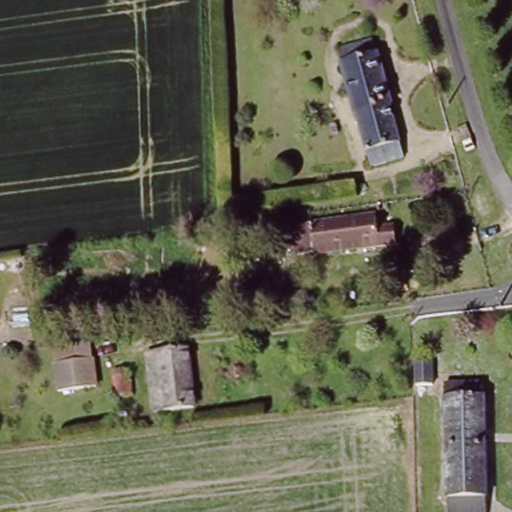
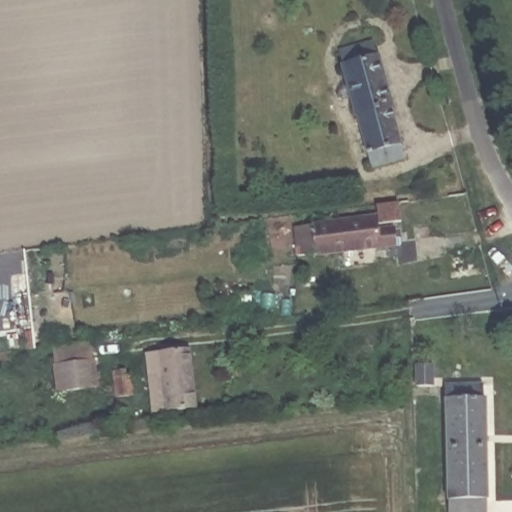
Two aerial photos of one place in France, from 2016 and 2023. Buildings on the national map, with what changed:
unchanged [(405,163),(371,172),(341,53),(375,44),(405,163)]
unchanged [(381,215),(382,228),(400,227),(402,245),(314,255),(300,256),(296,224),(381,215)]
unchanged [(87,342),(95,381),(57,386),(52,346),(87,342)]
unchanged [(187,355),(193,408),(156,413),(150,359),(187,355)]
unchanged [(429,368),(429,388),(412,388),(412,368),(429,368)]
unchanged [(120,369),(121,388),(106,389),(105,370),(120,369)]
unchanged [(481,388),(481,402),(484,401),(485,512),(446,512),(445,389),(481,388)]

